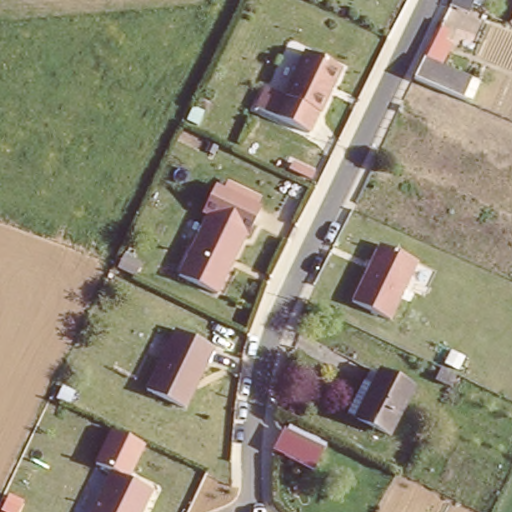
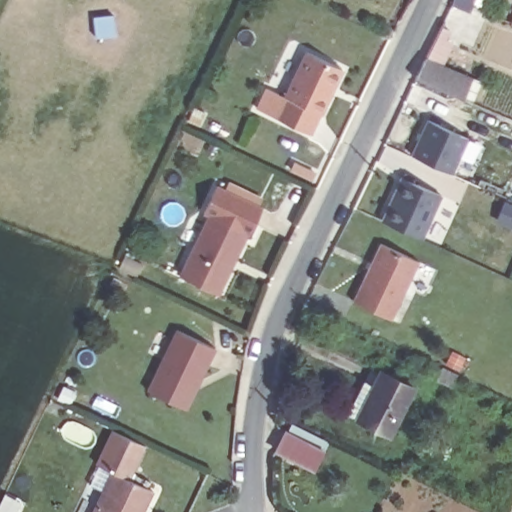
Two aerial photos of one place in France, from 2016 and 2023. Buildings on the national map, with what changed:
unchanged [(467,11),(449,4),(450,0),(471,0),(467,11)]
unchanged [(430,36),(451,42),(443,59),(472,73),(464,97),(410,76),(430,36)]
unchanged [(338,65),(317,111),(315,113),(307,130),(252,106),(262,86),(281,94),(302,49),(338,65)]
new [(427,120),(467,141),(452,174),(411,154),(427,120)]
new [(401,177),(442,197),(422,239),(382,221),(401,177)]
unchanged [(247,234),(207,215),(200,213),(215,182),(261,205),(247,234)]
unchanged [(247,234),(217,292),(177,274),(188,252),(190,253),(207,215),(247,234)]
unchanged [(393,317),(350,299),(377,242),(418,261),(393,317)]
unchanged [(215,347),(187,408),(148,390),(177,330),(215,347)]
unchanged [(374,365),(385,371),(415,386),(390,435),(350,415),(365,384),(374,365)]
unchanged [(326,447),(313,471),(272,450),(284,427),(326,447)]
unchanged [(143,512),(90,512),(110,471),(153,492),(143,512)]

